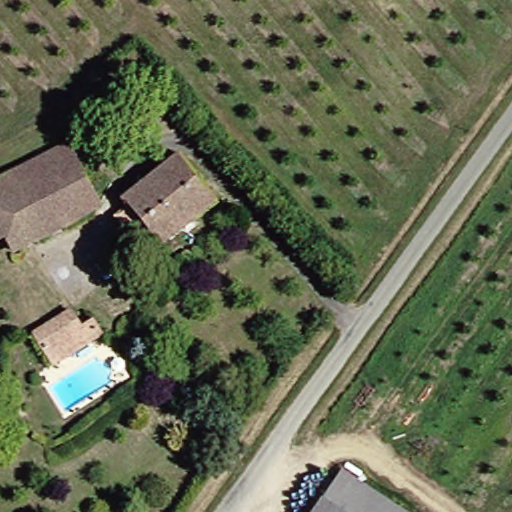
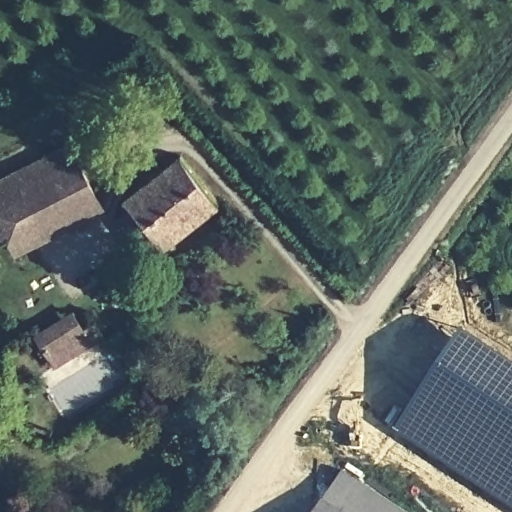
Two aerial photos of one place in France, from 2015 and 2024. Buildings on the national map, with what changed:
unchanged [(86,161),(71,168),(95,213),(10,258),(2,245),(0,246),(0,179),(75,141),(86,161)]
unchanged [(111,220),(124,211),(118,201),(178,158),(213,206),(154,250),(148,242),(135,251),(111,220)]
unchanged [(74,333),(85,325),(95,340),(47,369),(28,340),(62,319),(74,333)]
new [(462,330),(512,363),(512,507),(396,430),(462,330)]
unchanged [(316,505),(321,497),(323,494),(342,465),(416,512),(311,512),(316,505)]

